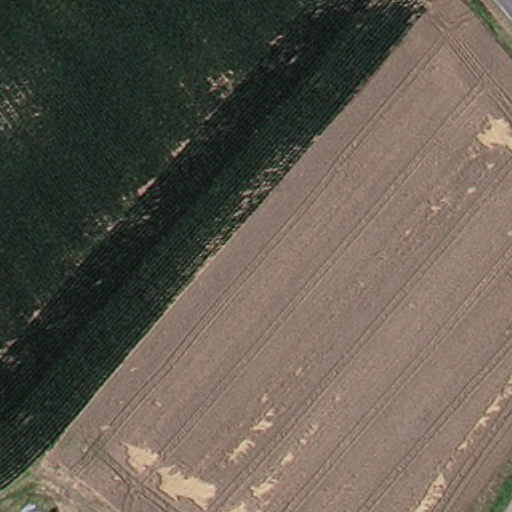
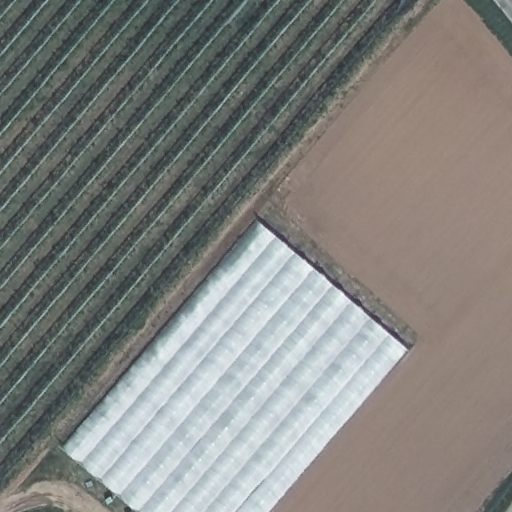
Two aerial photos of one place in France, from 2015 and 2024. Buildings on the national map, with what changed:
new [(59,449),(260,220),(410,350),(269,512),(131,512),(59,449)]

